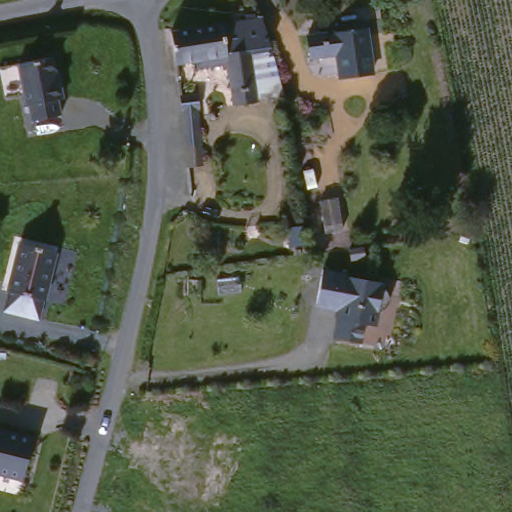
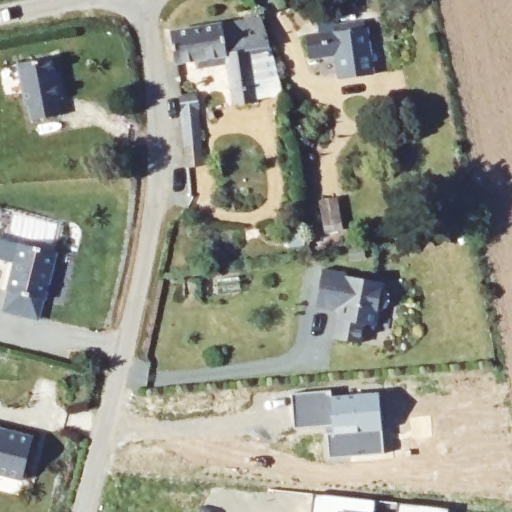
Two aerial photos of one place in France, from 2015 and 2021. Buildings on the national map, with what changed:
unchanged [(257,49),(233,53),(229,20),(269,14),(277,46),(257,49)]
unchanged [(178,27),(229,20),(233,53),(182,59),(178,27)]
unchanged [(359,27),(362,47),(319,53),(316,33),(359,27)]
unchanged [(262,98),(257,49),(277,46),(288,95),(262,98)]
unchanged [(257,49),(262,98),(260,101),(240,103),(233,53),(257,49)]
unchanged [(59,84),(61,84),(65,101),(60,102),(63,118),(34,123),(31,108),(29,108),(20,66),(54,60),(59,84)]
unchanged [(207,96),(210,169),(193,170),(188,97),(207,96)]
unchanged [(337,198),(343,229),(329,232),(323,201),(337,198)]
unchanged [(54,250),(43,298),(41,298),(37,317),(3,309),(8,289),(6,289),(18,241),(54,250)]
unchanged [(384,280),(378,328),(364,325),(363,341),(331,334),(338,311),(313,306),(320,266),(384,280)]
new [(331,390),(332,397),(379,394),(383,455),(328,458),(326,433),(332,433),(332,426),(294,428),(291,393),(331,390)]
unchanged [(0,469),(0,428),(35,438),(25,476),(0,469)]
new [(375,499),(374,512),(313,512),(315,493),(375,499)]
new [(450,508),(450,512),(396,512),(397,502),(450,508)]

